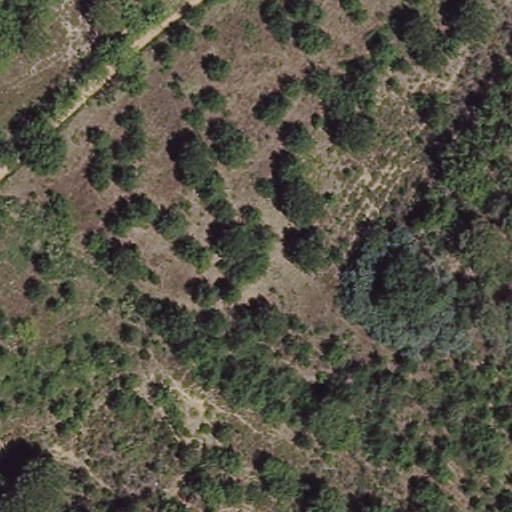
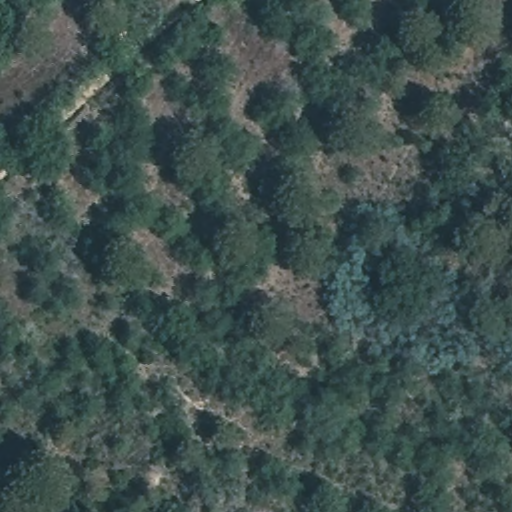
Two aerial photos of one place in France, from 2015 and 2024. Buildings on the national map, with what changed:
[]

